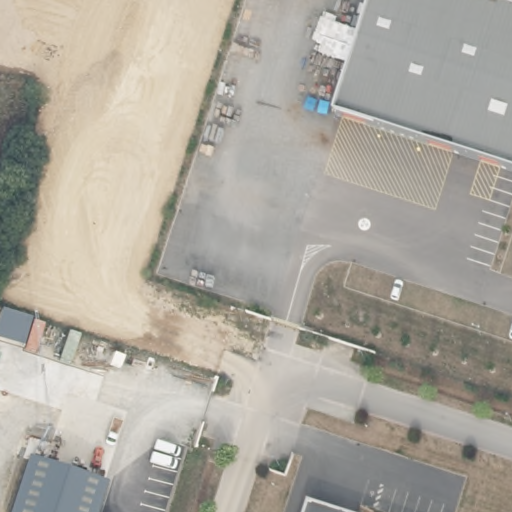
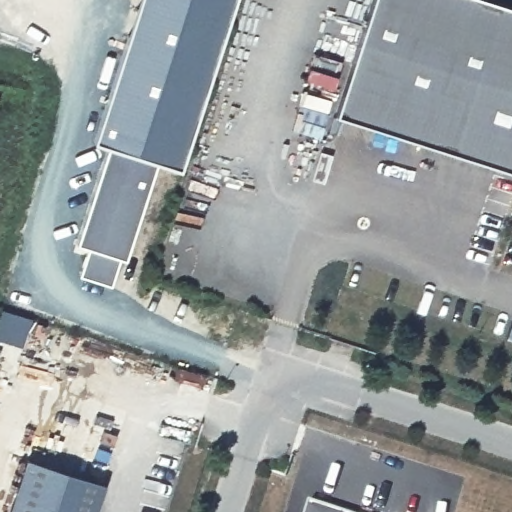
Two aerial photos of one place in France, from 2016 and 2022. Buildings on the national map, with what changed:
new [(138,0),(235,0),(180,169),(156,161),(124,258),(121,257),(110,285),(79,275),(89,246),(75,241),(106,145),(93,140),(138,0)]
unchanged [(370,0),(495,0),(512,5),(512,173),(333,117),(370,0)]
unchanged [(104,483),(96,512),(9,512),(26,460),(104,483)]
unchanged [(303,512),(308,499),(347,512),(303,512)]

